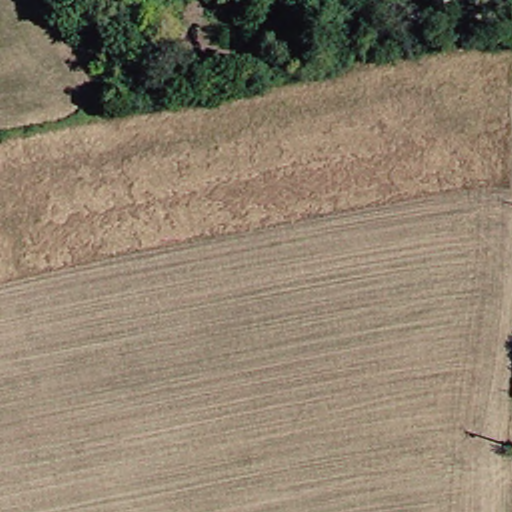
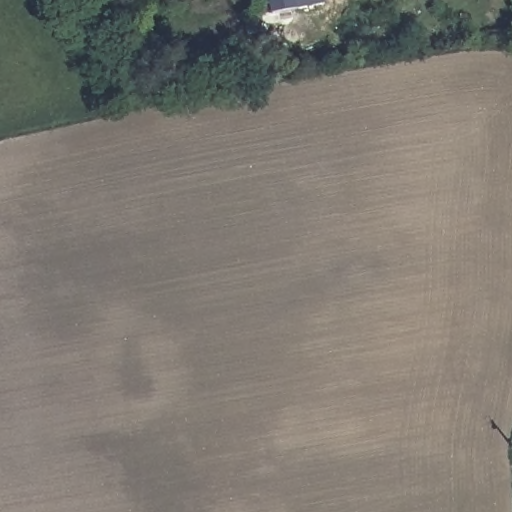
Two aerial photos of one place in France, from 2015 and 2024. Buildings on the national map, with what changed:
new [(325,2),(270,12),(269,4),(259,5),(258,0),(324,0),(325,2)]

